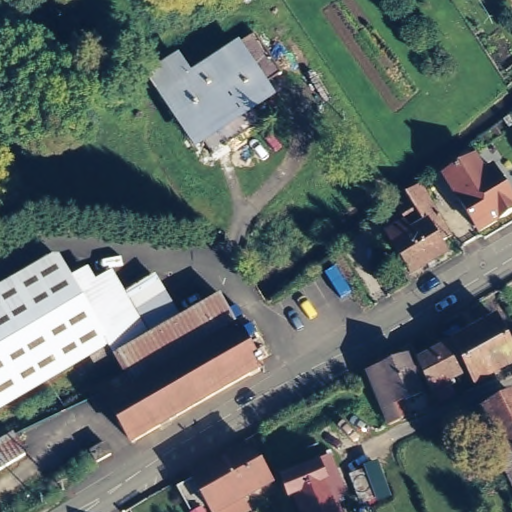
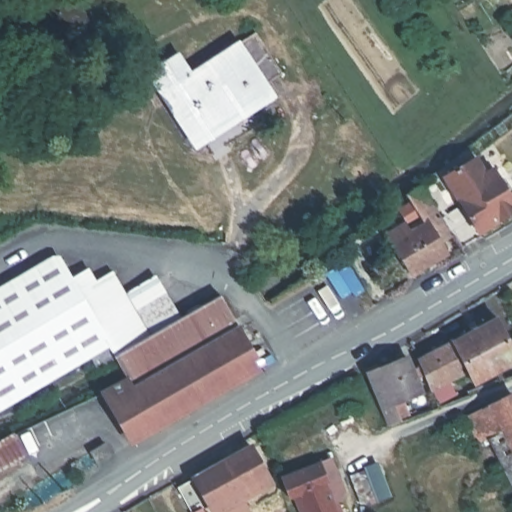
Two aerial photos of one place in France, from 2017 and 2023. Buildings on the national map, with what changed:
unchanged [(51,0),(73,0),(83,18),(67,28),(51,0)]
unchanged [(29,11),(5,23),(1,15),(25,3),(29,11)]
unchanged [(185,156),(138,75),(173,56),(185,76),(248,39),(282,96),(185,156)]
unchanged [(480,174),(485,182),(493,177),(512,207),(512,210),(474,233),(440,177),(470,158),(480,174)]
unchanged [(400,230),(405,239),(418,230),(413,221),(402,227),(396,216),(406,210),(401,201),(416,191),(446,241),(436,248),(441,258),(406,279),(382,240),(400,230)]
unchanged [(126,447),(97,397),(122,383),(110,362),(91,373),(85,360),(0,408),(0,292),(52,262),(67,286),(73,298),(92,287),(118,298),(148,280),(175,324),(215,301),(256,373),(126,447)]
unchanged [(85,275),(92,286),(73,297),(67,286),(85,275)]
unchanged [(492,324),(512,361),(512,364),(469,387),(460,370),(455,372),(458,380),(452,383),(460,400),(450,404),(432,412),(425,395),(412,366),(492,324)]
unchanged [(395,424),(396,426),(385,430),(362,378),(401,362),(406,374),(411,372),(415,381),(410,384),(416,399),(397,407),(403,421),(395,424)]
unchanged [(512,409),(512,495),(510,496),(482,441),(473,446),(462,423),(507,400),(512,409)]
unchanged [(13,435),(25,454),(0,469),(0,442),(13,435)]
unchanged [(96,463),(90,452),(105,443),(111,454),(96,463)]
unchanged [(193,483),(250,451),(271,488),(227,512),(210,512),(207,508),(199,512),(188,512),(177,492),(193,483)]
unchanged [(330,464),(338,485),(328,489),(336,510),(343,508),(345,512),(289,512),(285,501),(287,500),(281,483),(330,464)]

